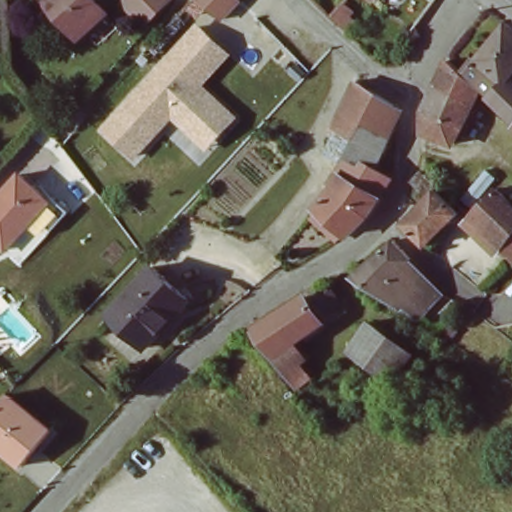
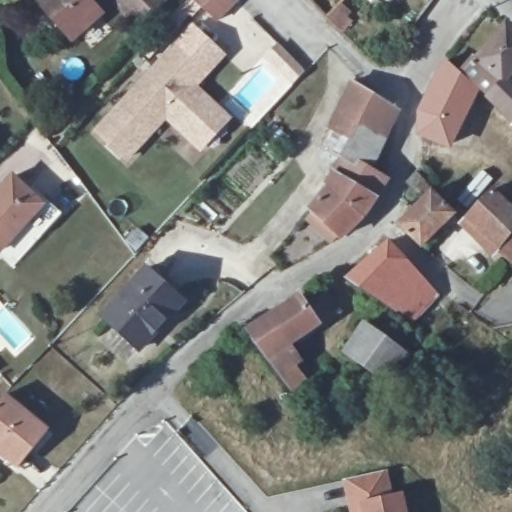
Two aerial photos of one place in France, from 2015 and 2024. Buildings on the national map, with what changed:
unchanged [(91,0),(99,8),(73,35),(46,10),(37,0),(91,0)]
unchanged [(155,0),(148,8),(140,0),(155,0)]
unchanged [(220,5),(215,0),(232,0),(225,9),(220,5)]
unchanged [(508,119),(502,113),(491,101),(492,99),(465,73),(467,70),(473,63),(477,59),(469,52),(499,20),(512,31),(512,75),(505,84),(512,91),(512,123),(508,119)]
unchanged [(200,86),(235,119),(203,155),(168,121),(128,163),(92,130),(195,23),(228,55),(200,86)]
unchanged [(425,136),(422,135),(424,109),(424,108),(435,86),(448,65),(479,93),(473,105),(451,146),(425,136)]
unchanged [(326,129),(349,81),(386,105),(394,112),(394,116),(383,141),(372,135),(371,135),(366,131),(357,127),(350,141),(350,140),(326,129)]
unchanged [(350,141),(357,127),(366,131),(371,135),(372,135),(383,141),(375,156),(368,163),(363,170),(381,181),(381,183),(378,190),(374,197),(371,200),(366,196),(351,187),(345,183),(344,182),(333,175),(338,164),(345,150),(346,146),(350,140),(350,141)]
unchanged [(20,183),(40,199),(30,210),(0,251),(0,185),(8,174),(20,183)]
unchanged [(368,206),(361,215),(357,219),(354,222),(348,228),(341,235),(341,236),(336,240),(321,226),(306,212),(319,197),(326,190),(323,188),(333,175),(344,182),(345,183),(351,187),(366,196),(371,200),(368,206)]
unchanged [(473,209),(490,193),(493,197),(506,210),(512,216),(512,266),(507,272),(492,256),(495,253),(462,219),(473,209)]
unchanged [(415,209),(429,194),(453,218),(422,249),(397,226),(415,209)]
unchanged [(406,275),(423,293),(402,317),(370,296),(361,290),(354,285),(392,247),(413,268),(406,275)]
unchanged [(99,317),(141,266),(180,298),(138,349),(99,317)]
unchanged [(246,331),(261,322),(305,296),(307,295),(311,301),(320,295),(332,312),(284,345),(296,361),(290,365),(301,381),(287,393),(246,331)]
unchanged [(379,381),(347,357),(337,349),(356,324),(398,354),(379,381)]
unchanged [(15,466),(0,454),(0,400),(42,431),(15,466)]
new [(355,508),(349,480),(387,472),(393,499),(404,496),(407,512),(356,512),(355,508)]

